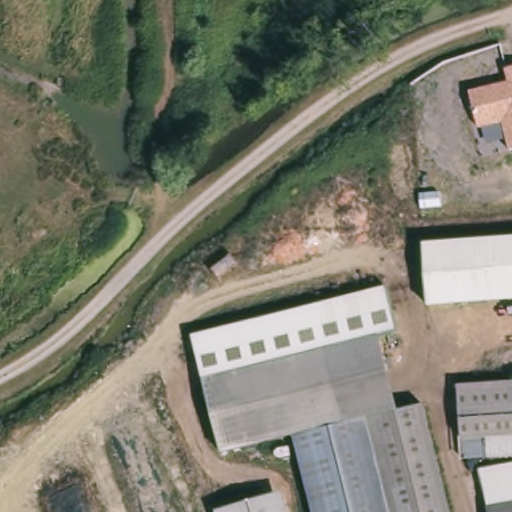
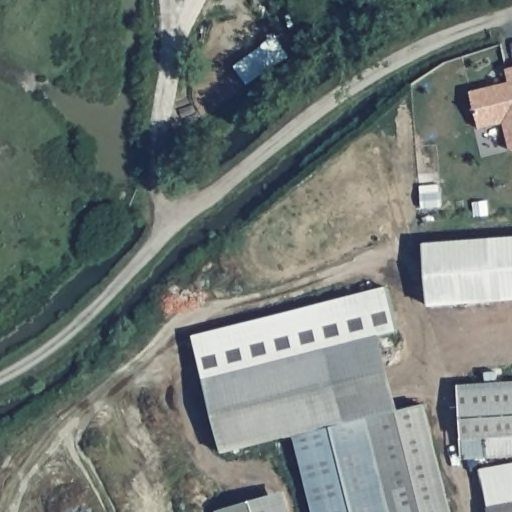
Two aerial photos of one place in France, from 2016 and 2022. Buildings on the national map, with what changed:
unchanged [(509,151),(503,123),(477,128),(469,89),(504,80),(503,69),(512,67),(512,151),(509,151)]
unchanged [(485,299),(481,239),(512,237),(512,302),(486,304),(485,299)]
unchanged [(481,239),(485,299),(429,304),(424,243),(481,239)]
unchanged [(381,335),(399,410),(425,403),(452,512),(312,512),(294,436),(223,454),(192,335),(389,287),(399,330),(381,335)]
unchanged [(461,393),(512,385),(512,462),(471,468),(461,393)]
unchanged [(479,470),(512,464),(512,512),(488,512),(479,470)]
unchanged [(284,492),(290,512),(216,512),(284,492)]

